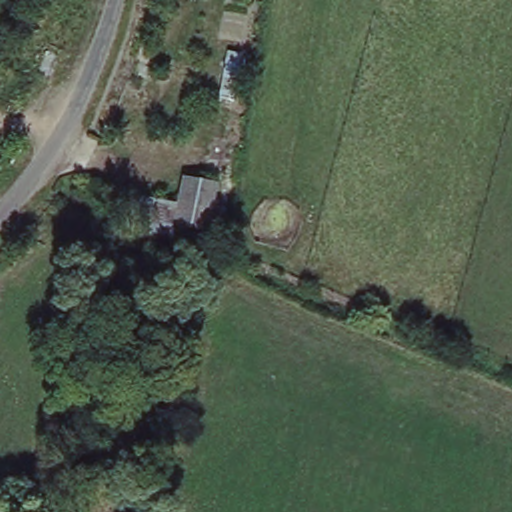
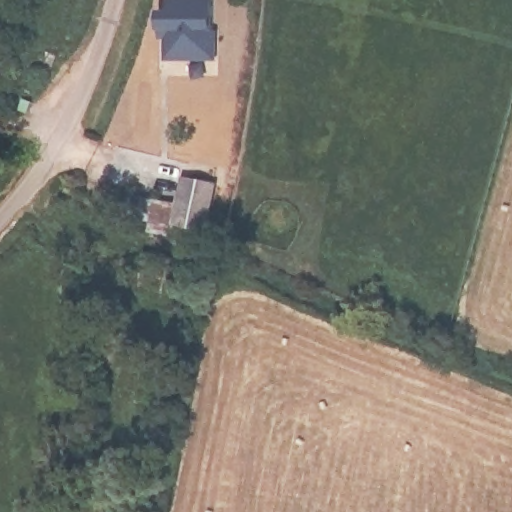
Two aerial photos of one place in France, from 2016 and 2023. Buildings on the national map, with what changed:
new [(160,13),(169,15),(169,0),(214,0),(213,61),(168,60),(169,34),(159,33),(160,13)]
unchanged [(211,230),(180,227),(174,250),(152,247),(158,204),(175,206),(182,173),(218,183),(211,230)]

